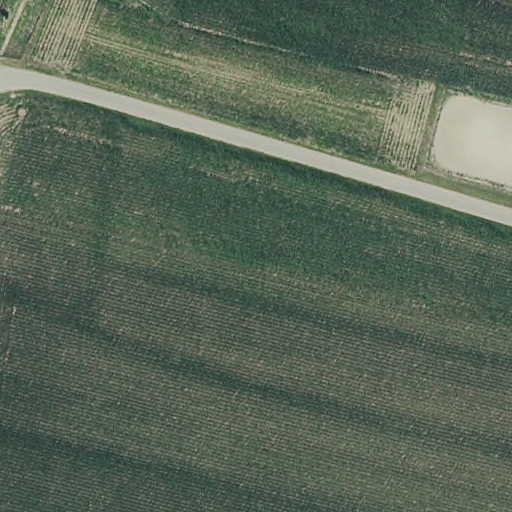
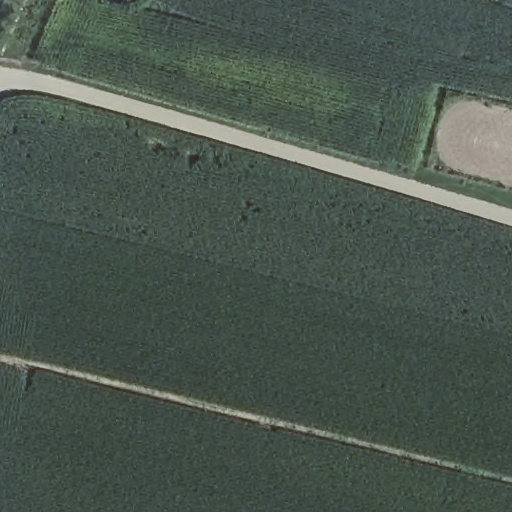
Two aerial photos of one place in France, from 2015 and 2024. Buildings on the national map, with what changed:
[]

